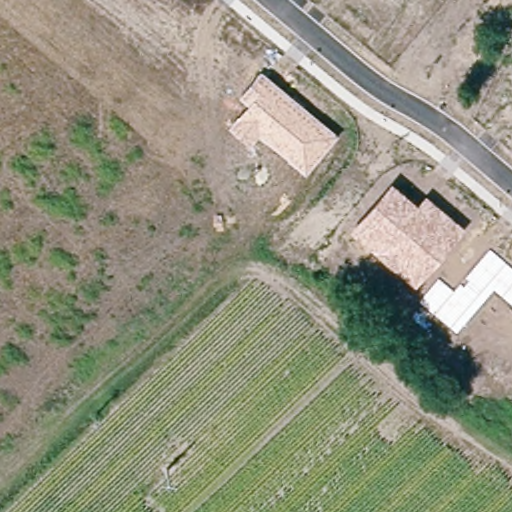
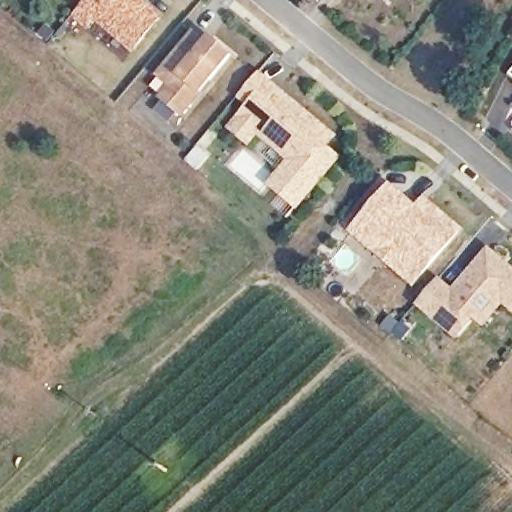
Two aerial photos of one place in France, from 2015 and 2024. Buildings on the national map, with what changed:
new [(105,0),(107,1),(108,0),(138,0),(160,19),(133,51),(94,19),(87,27),(73,16),(86,0),(105,0)]
new [(193,36),(226,63),(181,116),(161,99),(171,88),(158,76),(193,36)]
unchanged [(339,135),(306,176),(259,137),(251,147),(227,127),(248,106),(239,97),(261,71),(339,135)]
unchanged [(510,77),(512,75),(512,79),(510,77)]
unchanged [(417,206),(427,194),(465,228),(416,287),(349,232),(391,184),(417,206)]
new [(503,305),(484,327),(475,319),(457,340),(417,306),(441,278),(453,287),(490,247),(512,266),(512,312),(503,305)]

